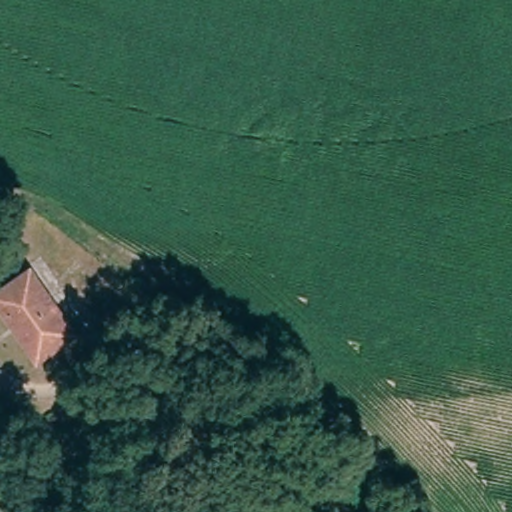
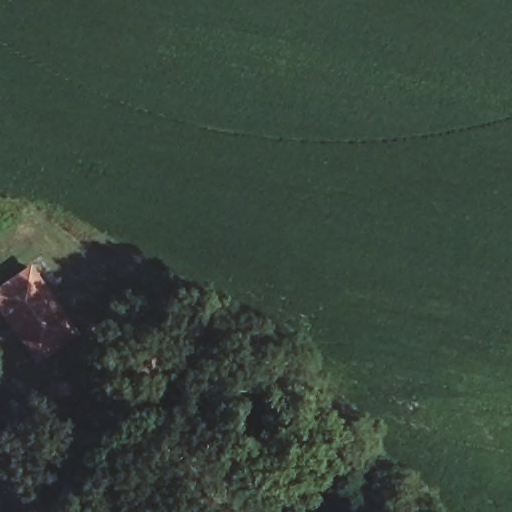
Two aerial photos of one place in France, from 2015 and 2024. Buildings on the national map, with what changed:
unchanged [(0,296),(32,273),(76,338),(36,366),(0,313),(0,296)]

